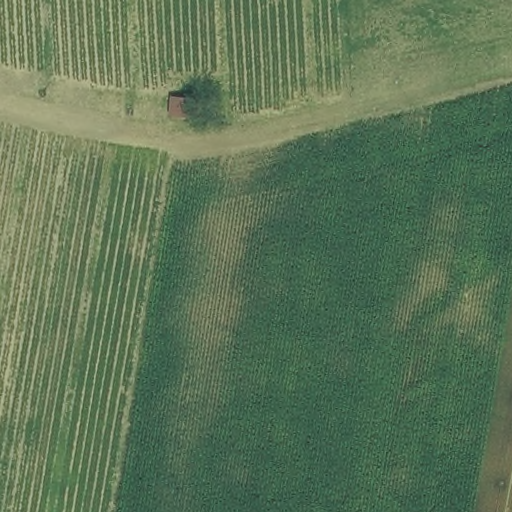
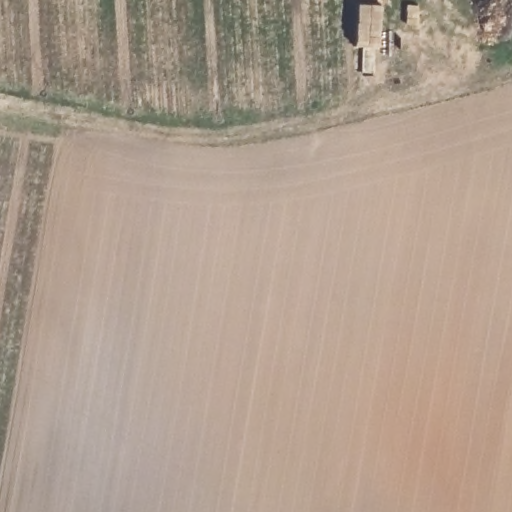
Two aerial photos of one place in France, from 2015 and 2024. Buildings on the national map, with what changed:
unchanged [(177,92),(216,96),(213,126),(172,122),(177,92)]

